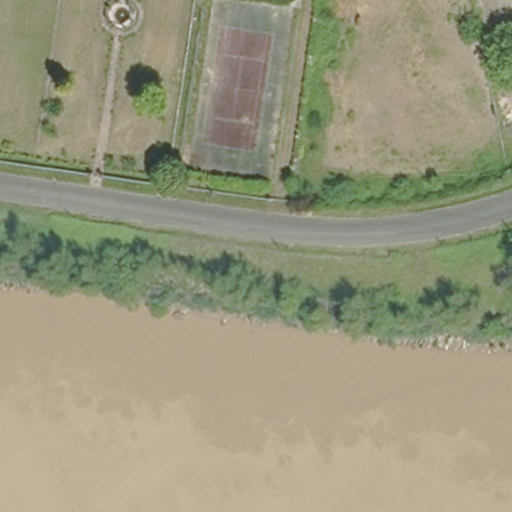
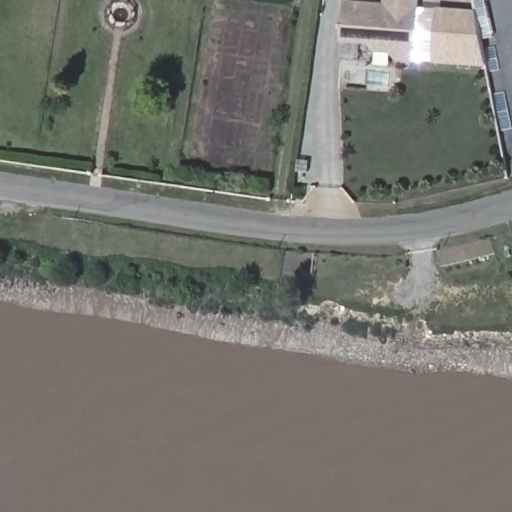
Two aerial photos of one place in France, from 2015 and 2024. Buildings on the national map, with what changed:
new [(392,54),(375,53),(368,44),(341,42),(345,0),(384,3),(384,0),(421,0),(421,6),(478,11),(489,67),(399,61),(392,54)]

